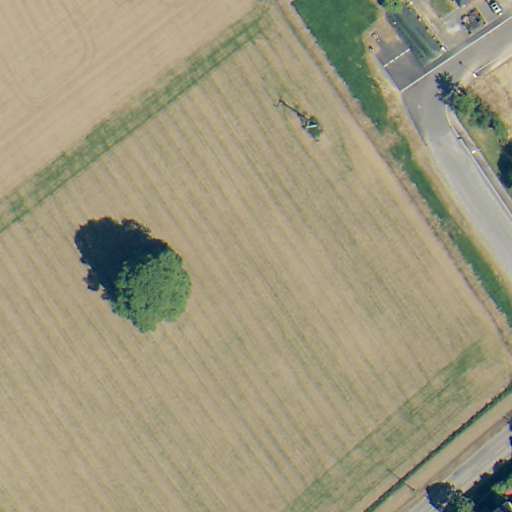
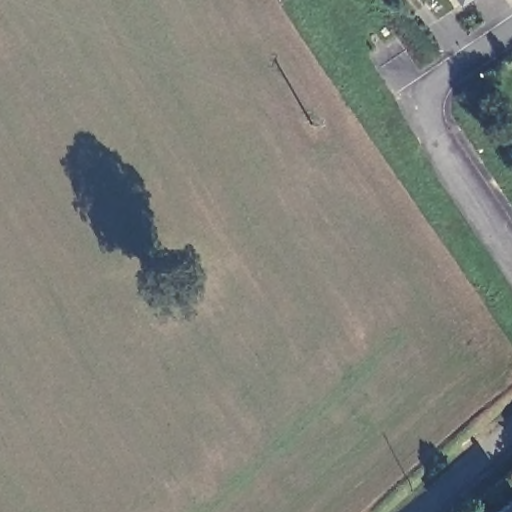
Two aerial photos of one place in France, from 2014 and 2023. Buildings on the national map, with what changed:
unchanged [(461,8),(455,0),(474,0),(461,8)]
unchanged [(510,493),(512,495),(512,512),(485,512),(509,494),(510,493)]

